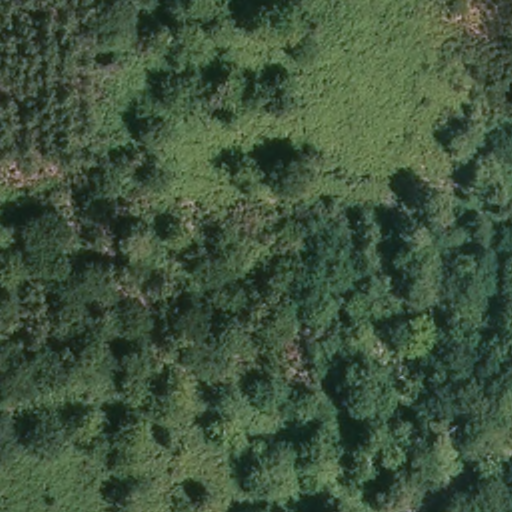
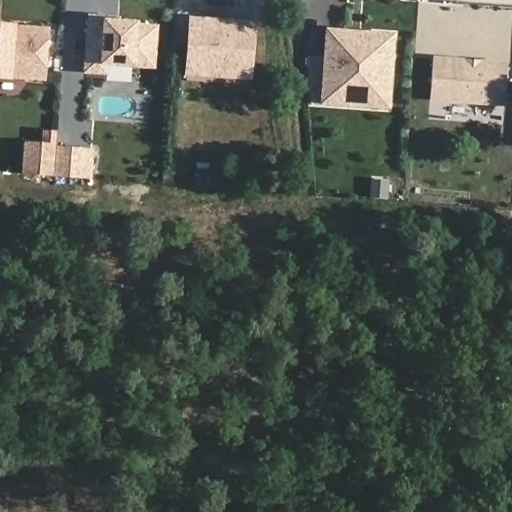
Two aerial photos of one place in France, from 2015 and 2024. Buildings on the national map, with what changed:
new [(107,17),(120,18),(120,21),(139,22),(139,24),(159,26),(157,67),(110,64),(109,73),(87,71),(91,15),(107,17)]
new [(194,19),(257,24),(254,65),(252,77),(190,72),(191,60),(194,19)]
new [(54,31),(50,80),(0,76),(0,27),(3,27),(54,31)]
new [(350,32),(368,33),(397,35),(395,72),(366,70),(362,106),(326,103),(331,30),(350,32)]
new [(435,57),(510,63),(507,104),(447,99),(432,98),(433,85),(435,57)]
new [(366,70),(395,72),(392,109),(362,106),(366,70)]
new [(92,178),(57,175),(27,173),(29,144),(46,146),(47,133),(60,135),(60,145),(95,148),(92,178)]

